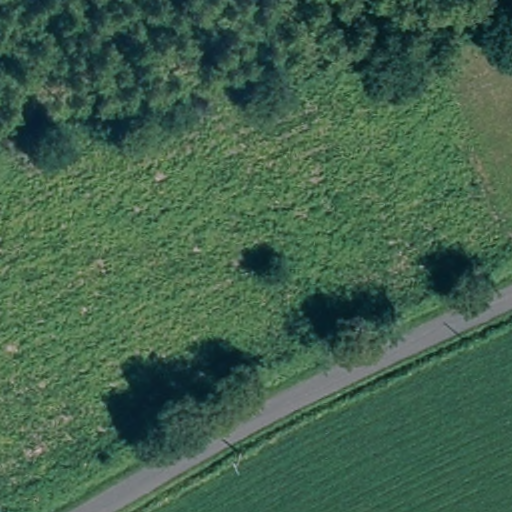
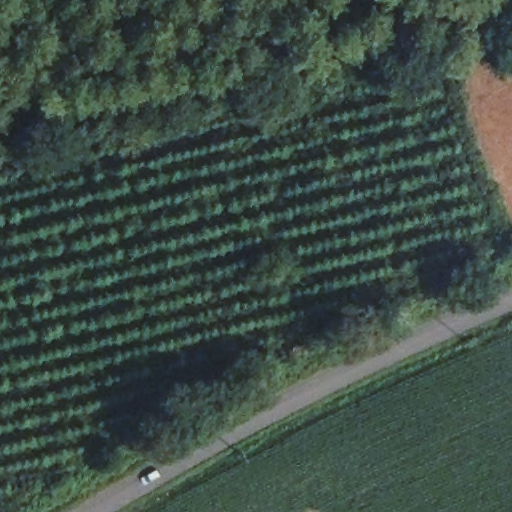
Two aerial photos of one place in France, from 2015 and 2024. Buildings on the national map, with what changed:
[]

